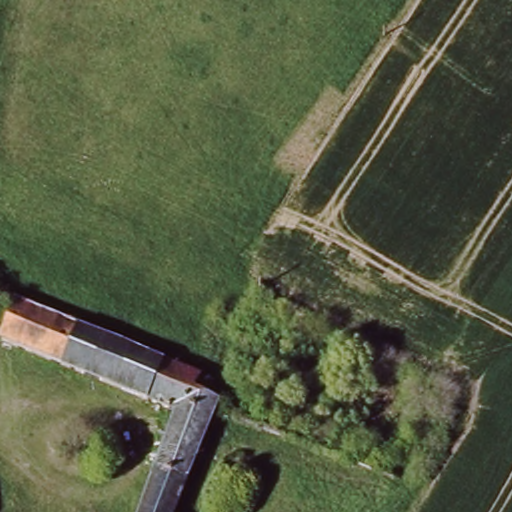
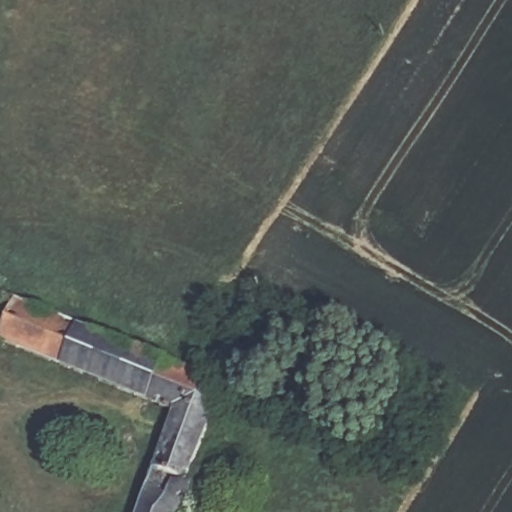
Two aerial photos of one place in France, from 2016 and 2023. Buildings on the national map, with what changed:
unchanged [(168,413),(0,339),(0,294),(204,373),(203,389),(223,396),(183,512),(138,512),(168,413)]

